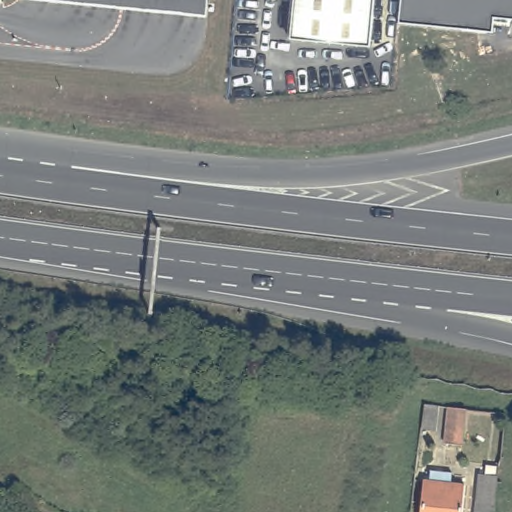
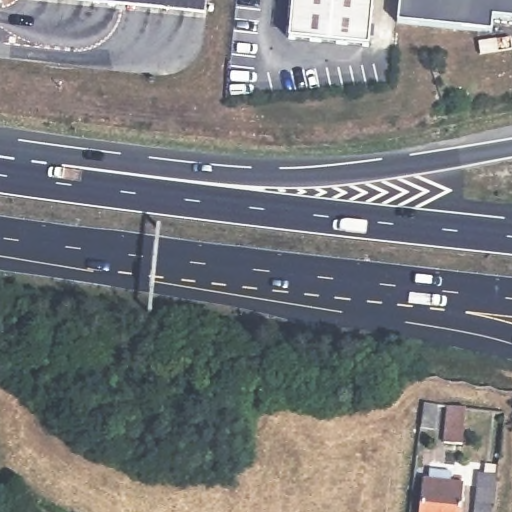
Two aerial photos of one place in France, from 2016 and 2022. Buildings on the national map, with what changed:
unchanged [(79,0),(207,0),(206,13),(79,0)]
unchanged [(289,40),(293,0),(373,0),(369,46),(289,40)]
unchanged [(512,0),(512,21),(493,19),(492,34),(397,24),(400,0),(512,0)]
unchanged [(423,407),(436,408),(436,419),(435,428),(421,426),(422,415),(423,407)]
unchanged [(444,441),(446,422),(446,409),(459,410),(458,424),(456,442),(444,441)]
unchanged [(451,486),(462,487),(459,512),(421,512),(424,483),(429,483),(431,468),(453,470),(451,486)]
unchanged [(481,473),(498,474),(493,512),(476,512),(481,473)]

